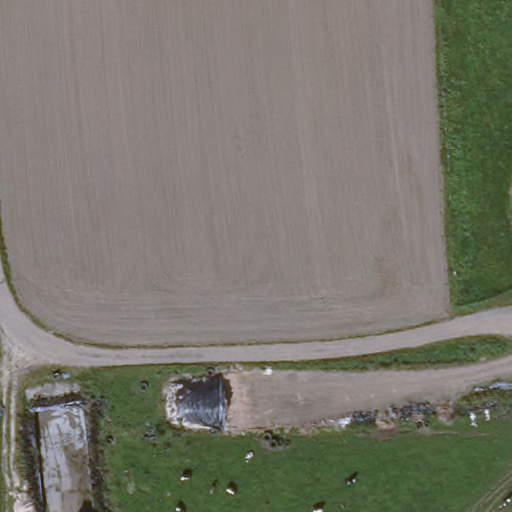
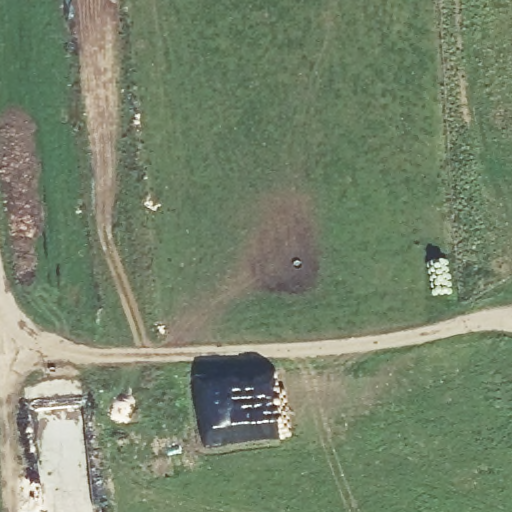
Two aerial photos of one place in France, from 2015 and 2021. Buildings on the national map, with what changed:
[]

